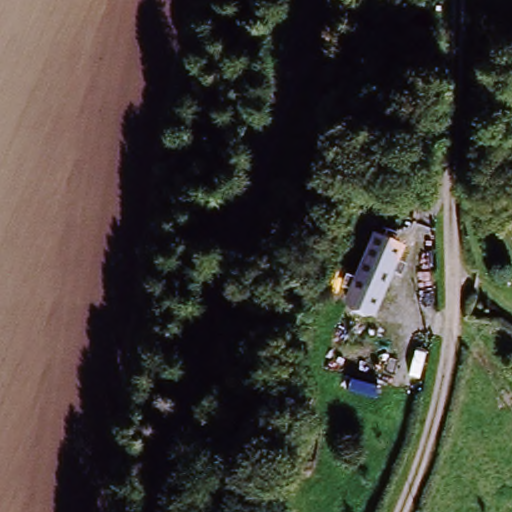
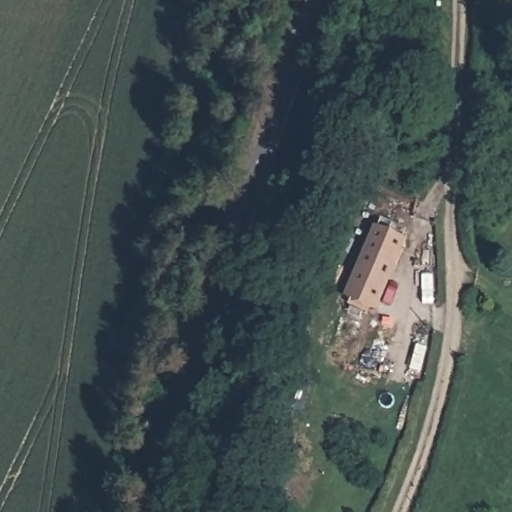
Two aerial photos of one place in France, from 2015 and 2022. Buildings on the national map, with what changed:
unchanged [(392,209),(413,220),(371,303),(350,292),(392,209)]

